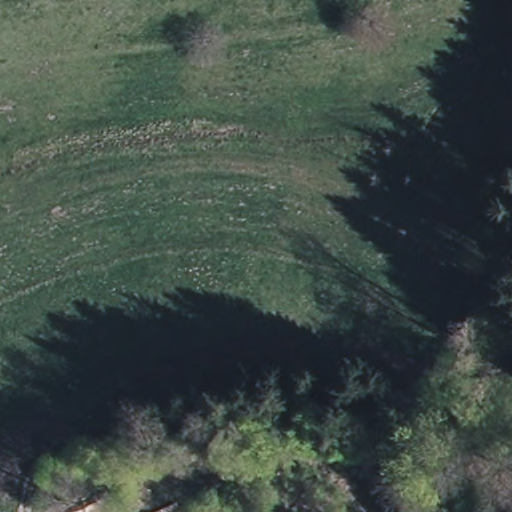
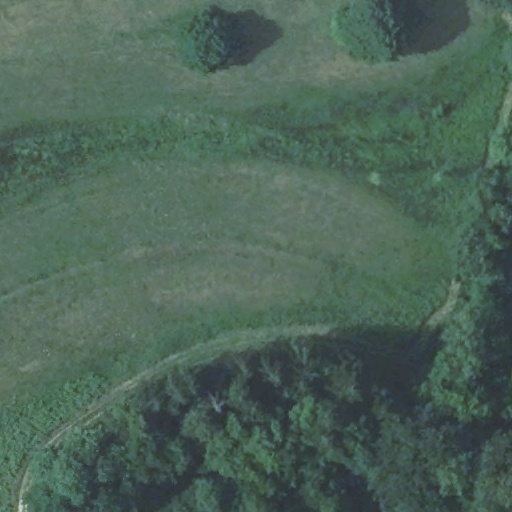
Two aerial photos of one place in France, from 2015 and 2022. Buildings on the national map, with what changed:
[]

